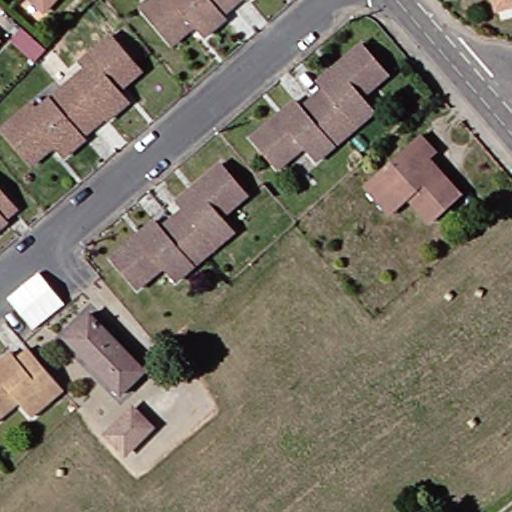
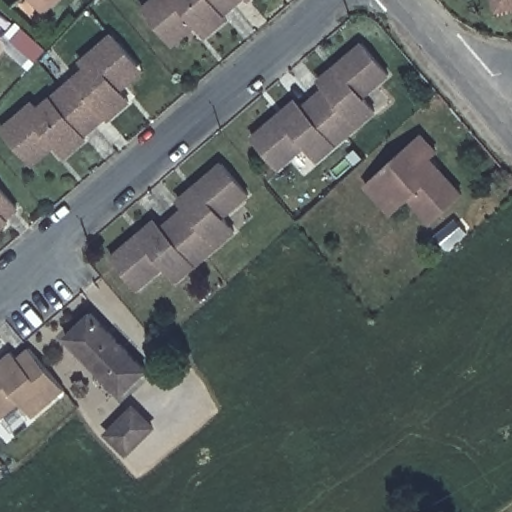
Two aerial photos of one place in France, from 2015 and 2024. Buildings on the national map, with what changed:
unchanged [(47,11),(36,0),(57,0),(47,11)]
unchanged [(170,38),(146,10),(157,0),(232,0),(239,8),(226,18),(230,23),(208,41),(198,29),(177,47),(170,38)]
unchanged [(239,8),(232,0),(248,0),(239,8)]
unchanged [(254,3),(252,0),(257,0),(254,3)]
unchanged [(501,9),(499,0),(512,0),(512,5),(501,9)]
unchanged [(80,67),(115,37),(137,63),(143,70),(119,91),(131,106),(111,123),(108,120),(96,131),(64,93),(86,74),(80,67)]
unchanged [(0,43),(0,39),(2,41),(0,43)]
unchanged [(322,93),(317,84),(363,47),(386,77),(363,98),(377,113),(347,139),(314,100),(322,93)]
unchanged [(24,161),(1,133),(34,105),(40,113),(64,93),(96,131),(90,135),(93,139),(68,161),(56,148),(30,169),(24,161)]
unchanged [(305,155),(284,174),(253,140),(282,115),(301,98),(308,106),(314,100),(347,139),(316,167),(305,155)]
unchanged [(365,185),(370,180),(424,135),(438,151),(428,161),(437,171),(460,199),(430,224),(407,200),(397,209),(391,214),(365,185)]
unchanged [(182,196),(197,183),(224,161),(255,196),(229,218),(240,231),(210,257),(174,215),(189,203),(182,196)]
unchanged [(0,228),(0,190),(19,212),(0,228)]
unchanged [(167,268),(141,290),(111,255),(141,231),(158,217),(164,224),(174,215),(210,257),(179,282),(167,268)]
unchanged [(148,369),(124,393),(66,337),(91,310),(148,369)]
unchanged [(0,416),(0,359),(11,351),(16,358),(31,346),(67,389),(31,417),(19,401),(0,416)]
unchanged [(149,429),(124,451),(105,428),(115,419),(130,406),(132,410),(149,429)]

